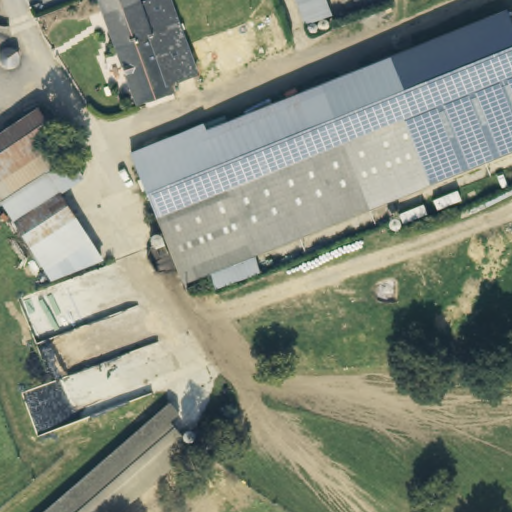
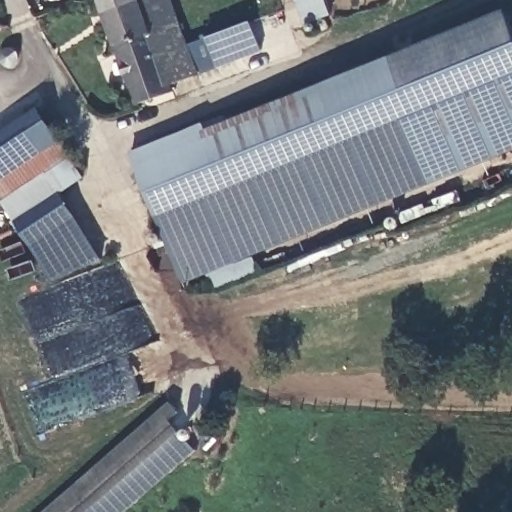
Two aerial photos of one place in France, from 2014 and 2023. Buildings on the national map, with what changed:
unchanged [(167,0),(194,76),(166,85),(170,96),(159,99),(144,104),(138,106),(101,0),(167,0)]
unchanged [(325,0),(330,15),(315,20),(304,24),(295,0),(325,0)]
unchanged [(394,56),(511,11),(512,14),(512,131),(435,161),(394,56)]
new [(262,51),(218,68),(194,76),(184,47),(207,37),(251,21),(262,51)]
unchanged [(14,46),(16,46),(23,56),(21,59),(19,61),(16,63),(14,63),(11,63),(8,63),(6,61),(5,59),(4,56),(4,53),(5,51),(6,48),(8,47),(11,46),(14,46)]
unchanged [(394,56),(435,161),(172,261),(153,209),(358,124),(362,123),(342,76),(394,56)]
unchanged [(130,144),(202,116),(207,128),(342,76),(362,123),(358,124),(153,209),(130,144)]
unchanged [(84,175),(60,190),(100,254),(52,274),(3,197),(0,199),(0,131),(40,105),(84,175)]
unchanged [(512,131),(512,151),(441,178),(435,161),(512,131)]
unchanged [(212,277),(208,267),(178,278),(172,261),(435,161),(441,178),(253,249),(257,260),(212,277)]
unchanged [(169,421),(190,447),(116,512),(47,512),(169,404),(177,413),(169,421)]

